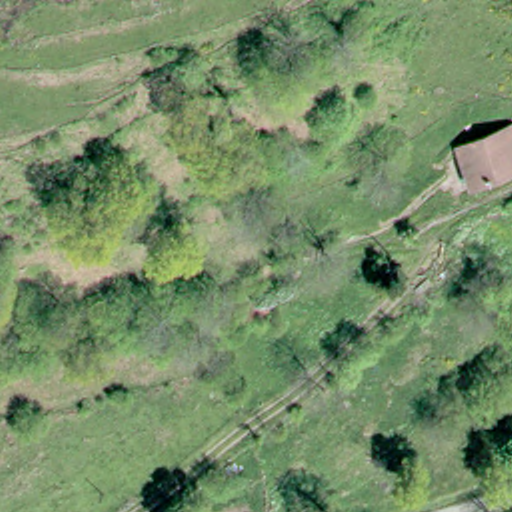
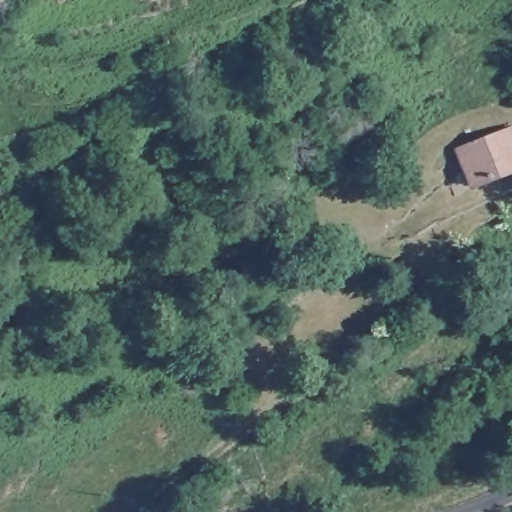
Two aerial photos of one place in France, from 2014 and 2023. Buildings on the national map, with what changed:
unchanged [(512,169),(457,194),(442,154),(512,124),(512,169)]

